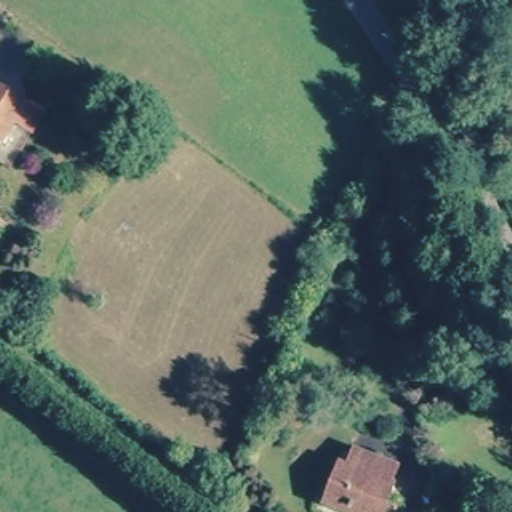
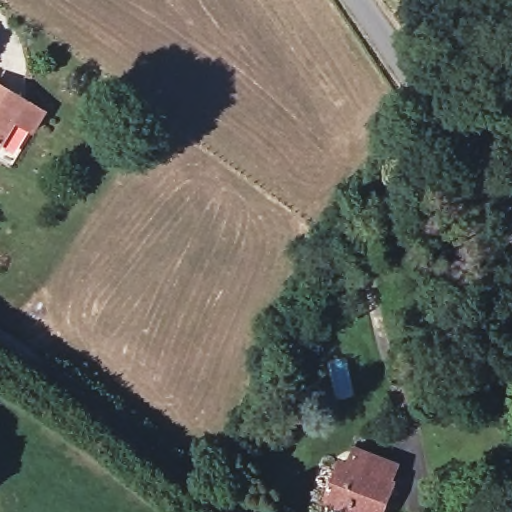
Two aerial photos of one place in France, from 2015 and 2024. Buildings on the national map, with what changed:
unchanged [(17,123),(4,151),(0,150),(0,87),(43,109),(33,132),(17,123)]
unchanged [(333,471),(343,475),(354,449),(394,464),(387,483),(398,487),(388,512),(350,512),(322,501),(333,471)]
unchanged [(316,512),(295,512),(302,503),(316,512)]

